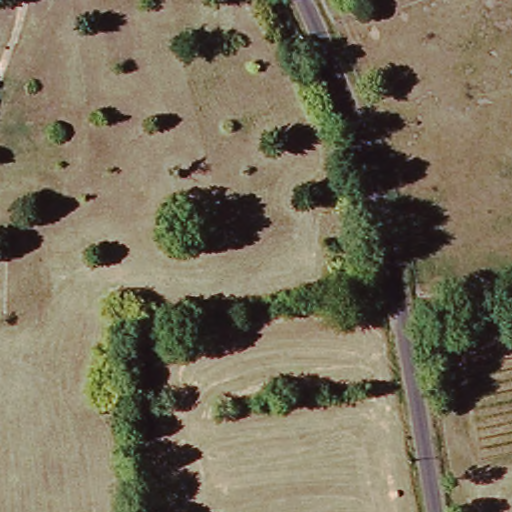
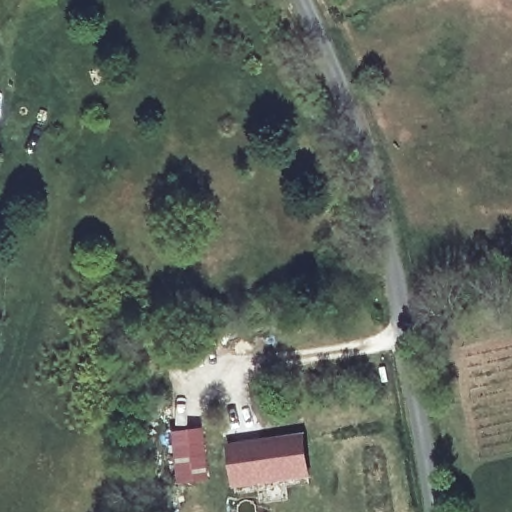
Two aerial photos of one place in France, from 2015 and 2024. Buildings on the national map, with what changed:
new [(171,431),(202,427),(208,480),(176,483),(171,431)]
new [(301,436),(306,476),(232,484),(227,444),(301,436)]

